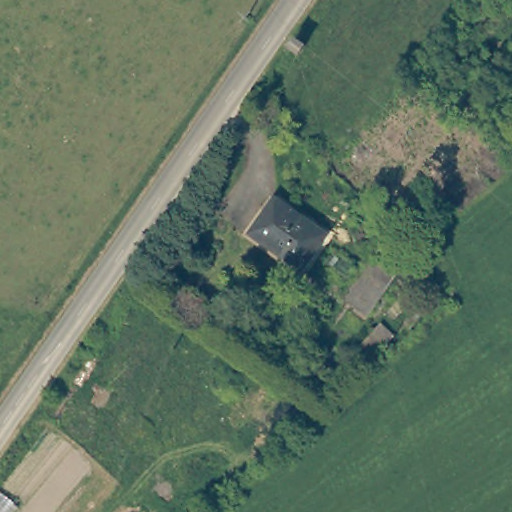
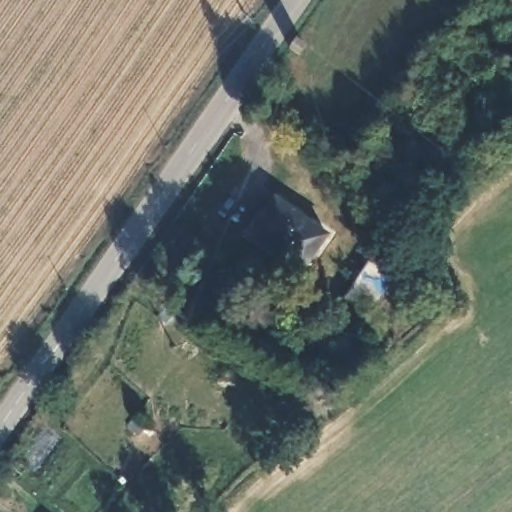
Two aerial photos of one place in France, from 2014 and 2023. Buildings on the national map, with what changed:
unchanged [(325,234),(302,268),(247,229),(272,195),(325,234)]
unchanged [(401,274),(369,315),(345,298),(376,257),(401,274)]

